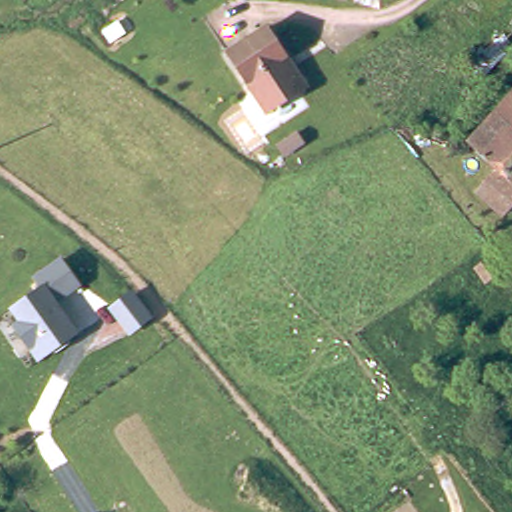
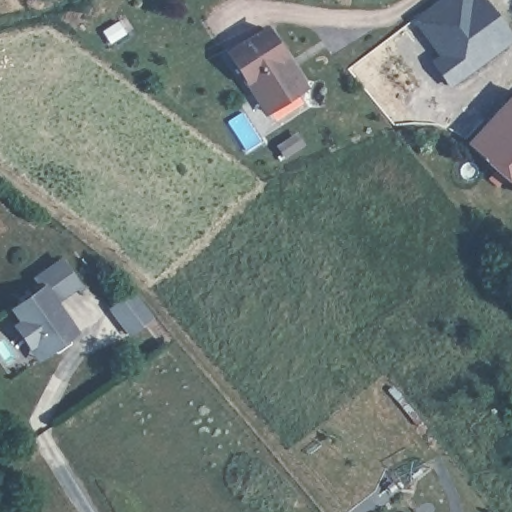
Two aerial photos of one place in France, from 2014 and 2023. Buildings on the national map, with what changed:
new [(474,2),(477,0),(483,0),(498,20),(512,40),(512,44),(451,87),(435,64),(444,58),(417,19),(444,0),(473,0),(474,2)]
unchanged [(235,52),(274,28),(291,56),(288,58),(296,71),(299,68),(308,81),(305,91),(274,112),(235,52)]
unchanged [(474,149),(512,107),(512,183),(502,174),(474,149)]
unchanged [(509,221),(482,195),(502,174),(512,183),(512,217),(509,221)]
unchanged [(58,302),(78,334),(37,362),(13,323),(17,321),(9,307),(38,287),(31,277),(60,256),(81,286),(58,302)]
unchanged [(153,318),(129,337),(108,308),(132,291),(153,318)]

